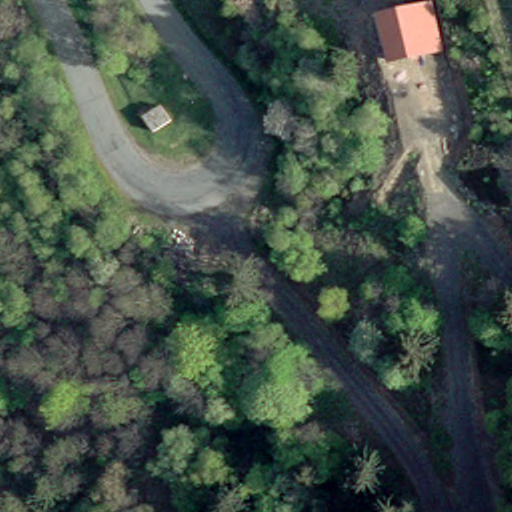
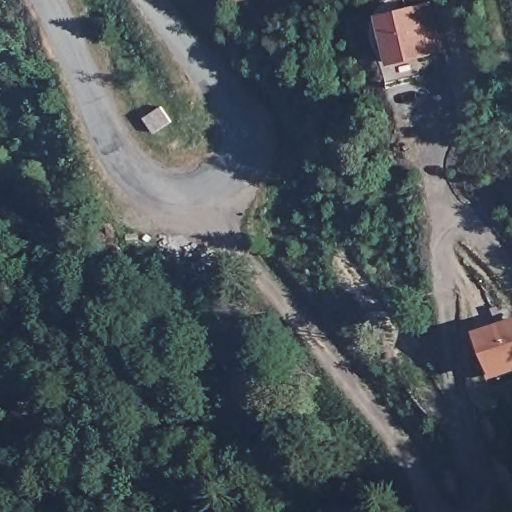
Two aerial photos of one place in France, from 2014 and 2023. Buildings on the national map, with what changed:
demolished [(273,11),(275,0),(305,0),(303,16),(273,11)]
unchanged [(433,1),(443,51),(388,61),(377,15),(433,1)]
new [(492,383),(473,335),(512,319),(512,374),(492,383)]

